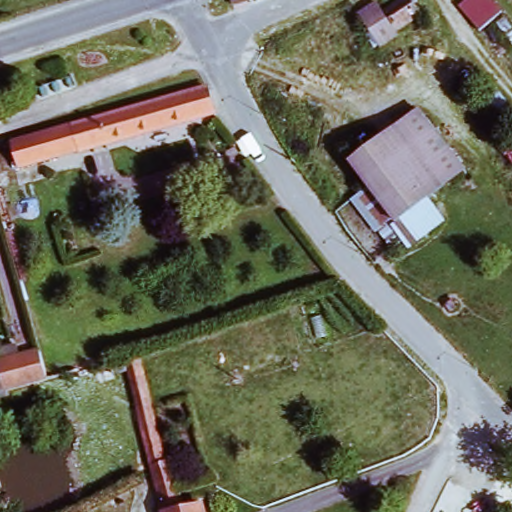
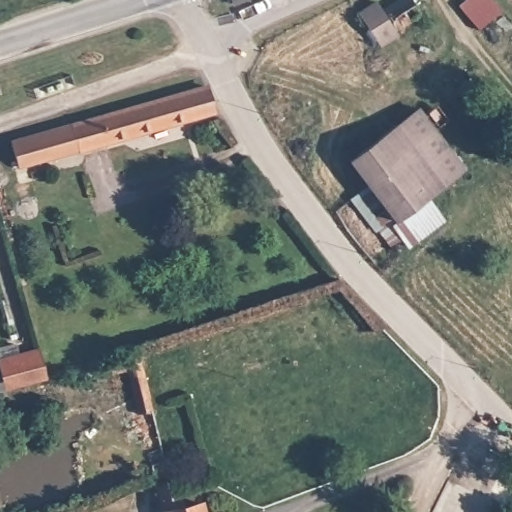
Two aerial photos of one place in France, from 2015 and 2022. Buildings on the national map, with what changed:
unchanged [(232,0),(248,0),(248,1),(233,6),(232,0)]
unchanged [(359,10),(374,0),(378,0),(382,7),(393,0),(415,0),(420,9),(395,26),(398,31),(381,43),(359,10)]
unchanged [(12,167),(5,139),(206,83),(213,108),(12,167)]
unchanged [(350,157),(418,106),(465,166),(426,196),(396,218),(350,157)]
unchanged [(396,218),(426,196),(443,219),(410,245),(392,222),(396,218)]
unchanged [(51,369),(10,381),(5,360),(2,352),(43,340),(51,369)]
unchanged [(171,458),(183,504),(200,500),(204,512),(164,512),(152,466),(128,366),(112,370),(109,357),(125,352),(137,349),(166,460),(171,458)]
unchanged [(10,381),(0,383),(0,361),(5,360),(10,381)]

